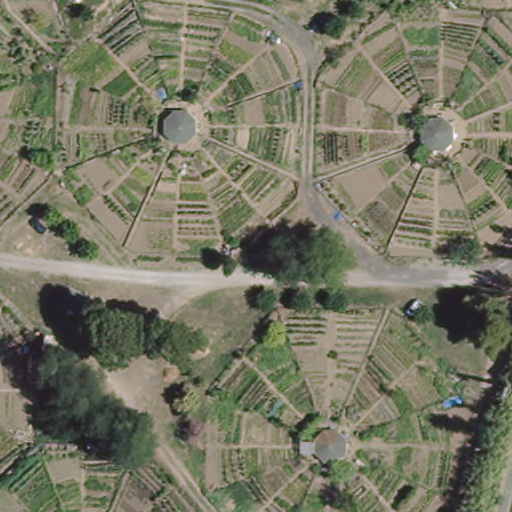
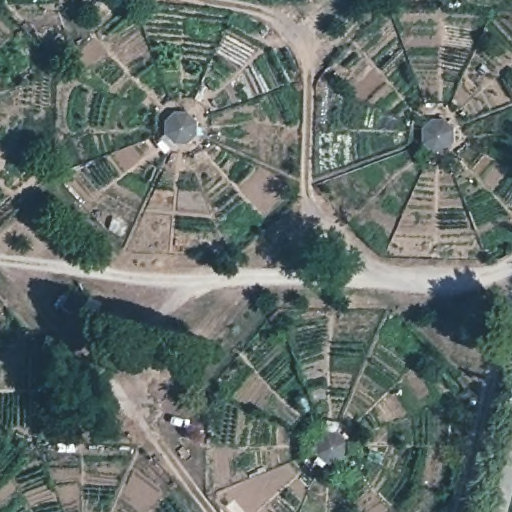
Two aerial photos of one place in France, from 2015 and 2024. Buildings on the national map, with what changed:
unchanged [(200,118),(198,133),(182,143),(168,134),(169,119),(185,111),(200,118)]
unchanged [(453,126),(452,142),(438,151),(421,141),(421,125),(438,119),(453,126)]
unchanged [(88,296),(79,315),(61,306),(70,287),(88,296)]
unchanged [(346,437),(346,455),(331,465),(314,455),(315,436),(332,428),(346,437)]

